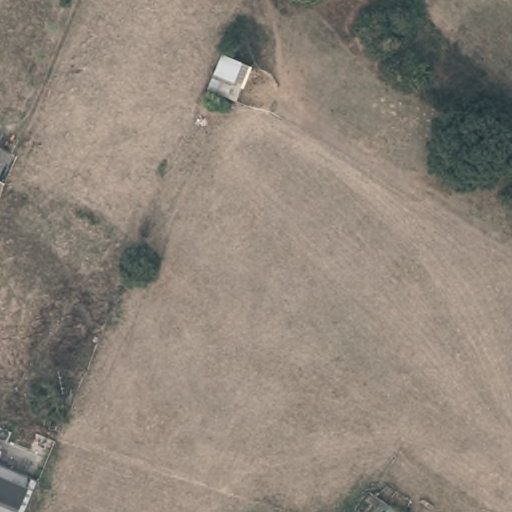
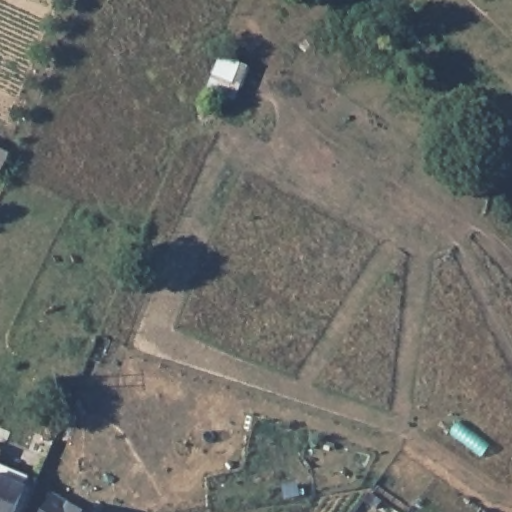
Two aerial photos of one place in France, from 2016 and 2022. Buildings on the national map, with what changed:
unchanged [(3,454),(0,461),(0,452),(3,454)]
unchanged [(37,484),(25,512),(0,512),(0,468),(37,484)]
new [(90,512),(45,512),(55,494),(90,512)]

